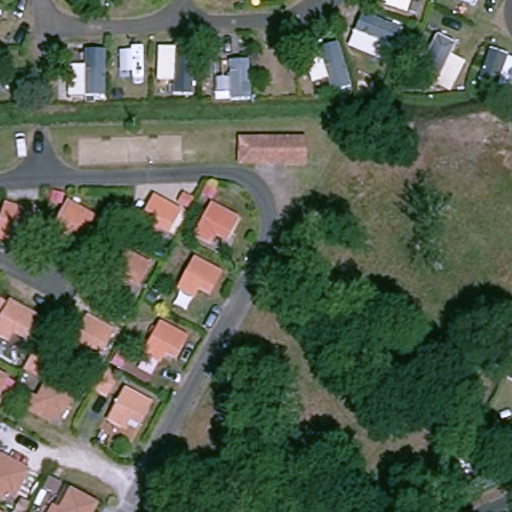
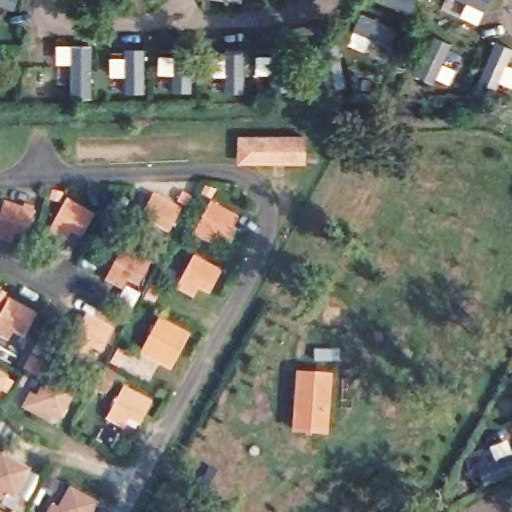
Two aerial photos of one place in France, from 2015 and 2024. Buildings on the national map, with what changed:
unchanged [(239,132),(302,132),(302,156),(262,156),(262,154),(239,153),(239,132)]
unchanged [(132,225),(138,214),(151,190),(176,203),(162,228),(153,223),(147,233),(132,225)]
unchanged [(200,229),(205,219),(219,194),(244,208),(230,232),(221,227),(215,238),(200,229)]
unchanged [(0,208),(3,197),(30,205),(22,232),(11,229),(8,241),(0,239),(0,208)]
unchanged [(54,237),(60,226),(73,201),(97,215),(84,239),(75,234),(69,245),(54,237)]
unchanged [(106,277),(112,267),(125,242),(150,256),(136,280),(127,275),(121,286),(106,277)]
unchanged [(180,286),(185,275),(199,251),(224,264),(210,289),(201,284),(195,295),(180,286)]
unchanged [(74,348),(80,338),(93,313),(117,327),(104,351),(95,346),(90,357),(74,348)]
unchanged [(138,348),(144,337),(157,313),(181,327),(168,351),(159,346),(154,357),(138,348)]
unchanged [(27,328),(15,352),(5,347),(0,357),(0,321),(3,315),(27,328)]
new [(295,370),(332,373),(327,436),(290,432),(295,370)]
unchanged [(0,387),(0,372),(6,375),(0,387)]
unchanged [(32,415),(39,404),(52,380),(76,393),(62,418),(54,413),(47,423),(32,415)]
unchanged [(105,422),(110,412),(124,387),(149,401),(135,425),(126,420),(120,431),(105,422)]
unchanged [(0,466),(7,452),(32,465),(19,490),(10,485),(4,495),(0,494),(0,466)]
unchanged [(55,507),(69,483),(93,496),(84,512),(53,512),(55,507)]
unchanged [(2,512),(0,512),(0,508),(3,509),(2,512)]

